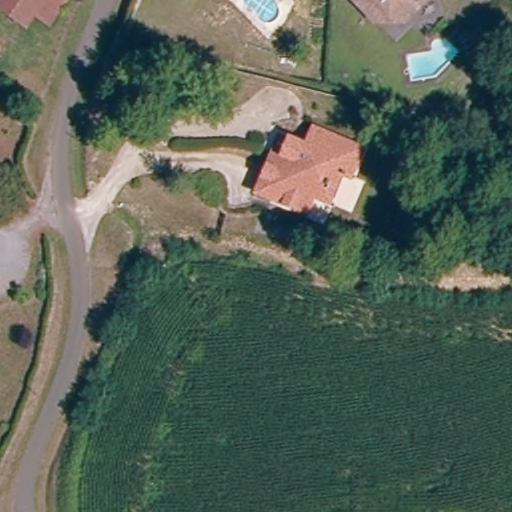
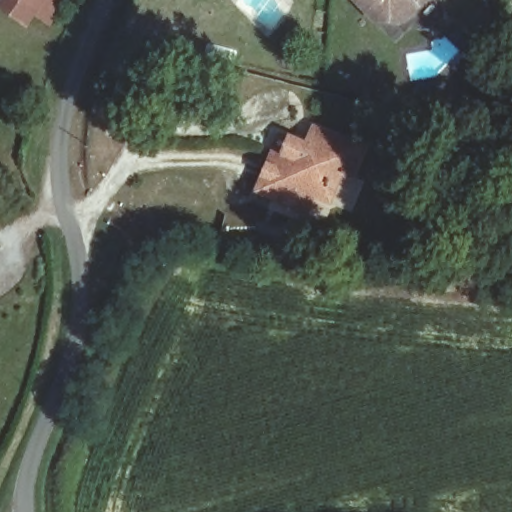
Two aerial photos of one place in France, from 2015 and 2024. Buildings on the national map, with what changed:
unchanged [(56,4),(49,18),(34,11),(26,22),(0,7),(0,4),(3,0),(67,0),(64,7),(56,4)]
unchanged [(354,0),(417,0),(396,20),(384,9),(373,20),(354,0)]
unchanged [(311,205),(308,213),(259,197),(280,135),(305,142),(310,127),(359,142),(349,172),(342,170),(330,210),(311,205)]

